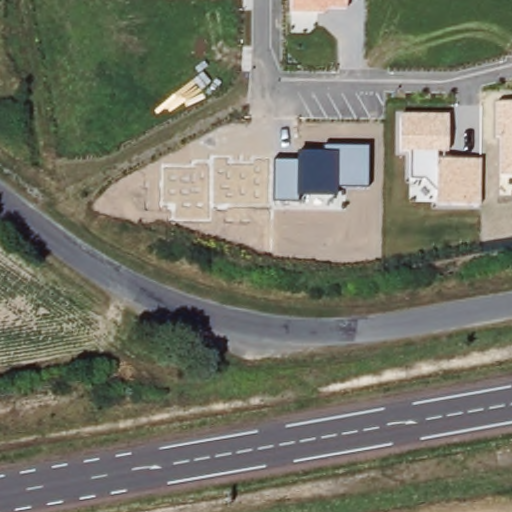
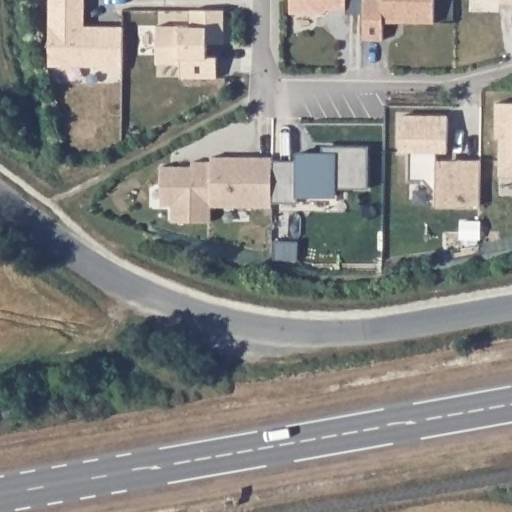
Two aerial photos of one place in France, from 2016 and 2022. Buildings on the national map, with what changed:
new [(52,0),(87,0),(87,16),(87,34),(125,34),(124,79),(107,79),(107,74),(52,74),(52,34),(52,16),(52,0)]
unchanged [(346,0),(346,8),(330,8),(323,14),(291,13),(291,0),(346,0)]
new [(382,3),(382,0),(434,0),(434,27),(382,27),(382,45),(363,45),(363,2),(382,3)]
new [(512,0),(512,6),(509,6),(509,1),(467,1),(467,0),(512,0)]
new [(157,33),(191,33),(191,16),(225,16),(224,49),(208,49),(208,63),(217,63),(217,84),(181,84),(181,71),(157,71),(157,33)]
unchanged [(500,138),(496,139),(496,103),(512,103),(512,176),(500,176),(500,138)]
unchanged [(437,195),(426,180),(410,180),(410,152),(400,151),(401,115),(449,115),(448,151),(438,151),(438,159),(480,160),(479,203),(437,203),(437,195)]
unchanged [(274,160),(297,161),(297,151),(324,152),(324,146),(368,148),(367,187),(338,186),(338,196),(298,195),(298,202),(272,201),(274,160)]
new [(272,207),(211,206),(211,222),(172,221),(172,205),(163,205),(162,165),(192,166),(192,160),(212,160),(212,155),(274,155),(274,160),(272,201),(272,207)]

